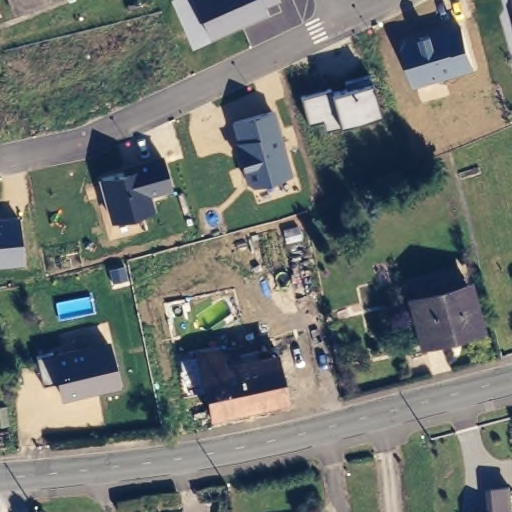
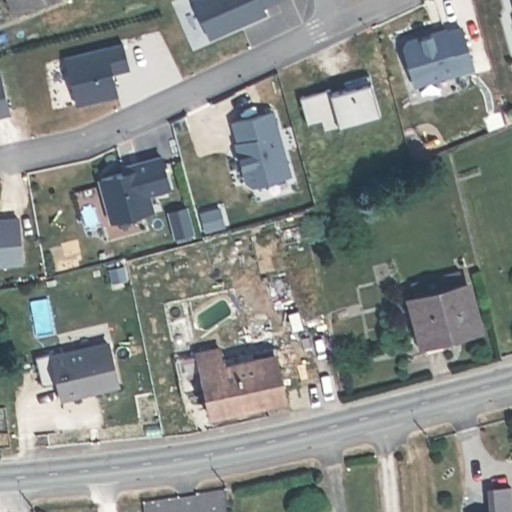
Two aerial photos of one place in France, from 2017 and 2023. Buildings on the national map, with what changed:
unchanged [(18,17),(9,0),(53,0),(18,17)]
unchanged [(211,37),(195,5),(193,0),(278,0),(264,6),(267,13),(211,37)]
unchanged [(473,68),(418,85),(403,49),(401,40),(461,22),(466,39),(475,67),(473,68)]
new [(78,102),(65,56),(123,41),(131,68),(113,72),(118,92),(78,102)]
new [(0,72),(1,71),(10,112),(0,115),(0,72)]
unchanged [(339,123),(325,125),(322,115),(319,116),(309,119),(301,95),(311,92),(329,87),(332,95),(346,90),(343,81),(369,75),(371,83),(379,112),(339,123)]
unchanged [(282,176),(251,185),(231,120),(247,116),(274,107),(293,172),(282,176)]
unchanged [(111,221),(99,180),(133,170),(130,161),(161,153),(172,190),(150,195),(154,210),(111,221)]
unchanged [(0,217),(19,215),(24,261),(0,264),(0,217)]
unchanged [(473,286),(484,328),(431,341),(420,298),(473,286)]
unchanged [(196,352),(221,347),(224,364),(243,360),(241,340),(271,333),(284,398),(209,415),(196,352)]
unchanged [(62,400),(57,380),(42,384),(36,356),(109,340),(120,385),(62,400)]
unchanged [(468,512),(491,510),(489,487),(509,485),(509,486),(512,512),(468,512)]

